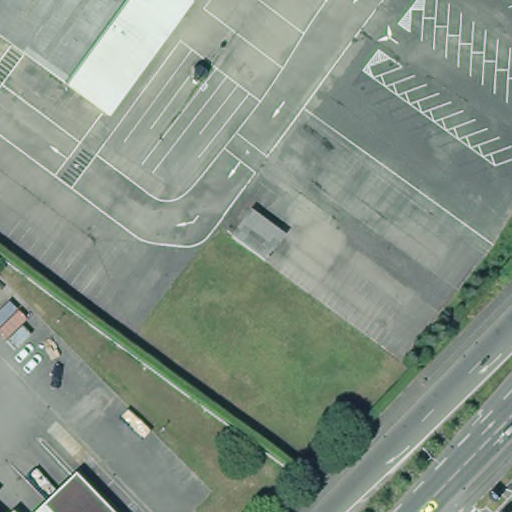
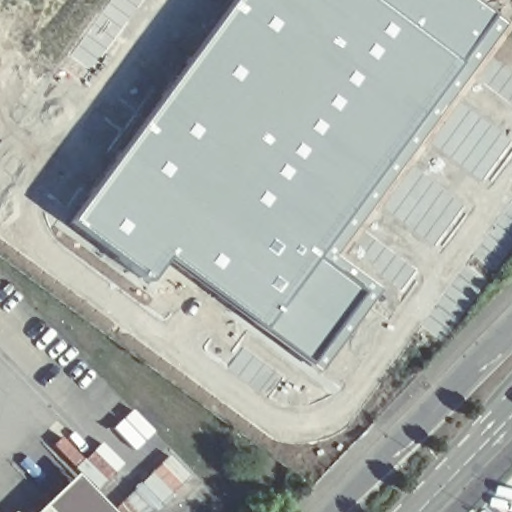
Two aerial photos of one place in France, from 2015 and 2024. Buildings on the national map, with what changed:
unchanged [(62,75),(0,30),(0,0),(116,0),(62,75)]
unchanged [(160,29),(103,105),(62,75),(116,0),(121,0),(160,29)]
new [(178,65),(228,0),(474,0),(504,22),(478,54),(474,50),(410,128),(314,257),(257,330),(198,287),(164,260),(145,284),(65,224),(178,65)]
unchanged [(160,29),(121,0),(180,0),(160,29)]
new [(314,257),(365,292),(336,333),(310,366),(257,330),(314,257)]
unchanged [(116,512),(35,512),(77,471),(116,512)]

